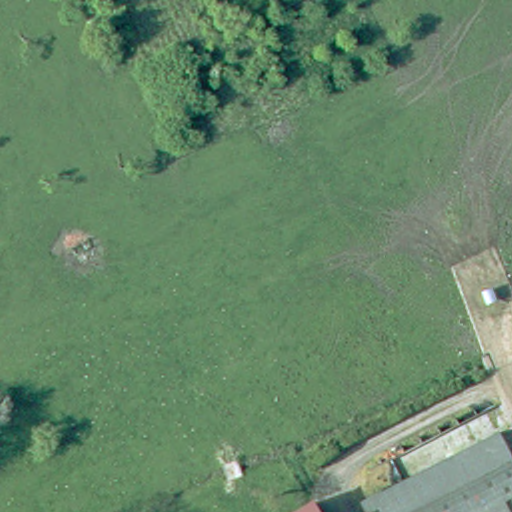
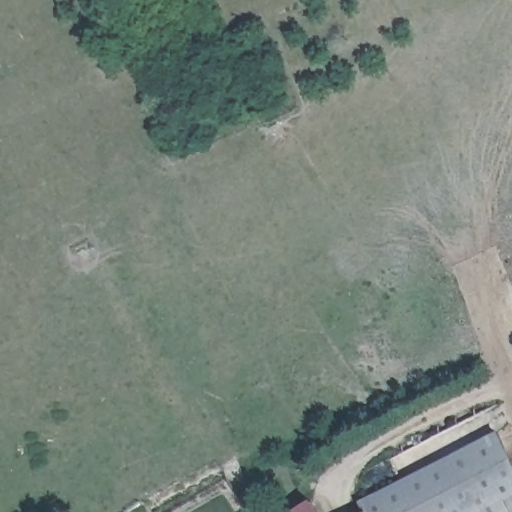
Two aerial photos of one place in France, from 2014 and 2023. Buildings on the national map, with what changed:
unchanged [(367,512),(360,497),(497,428),(512,457),(512,512),(367,512)]
unchanged [(308,500),(312,497),(320,512),(285,512),(308,500)]

